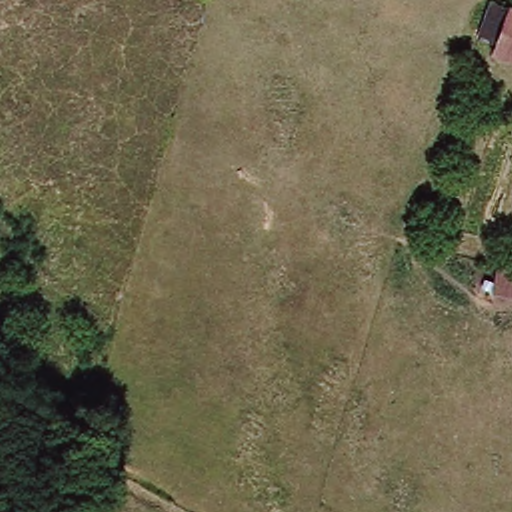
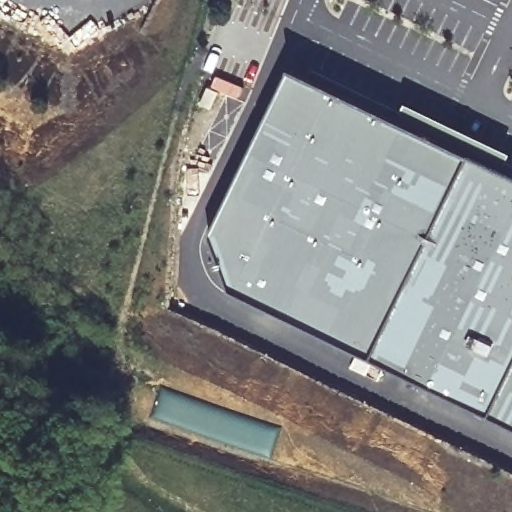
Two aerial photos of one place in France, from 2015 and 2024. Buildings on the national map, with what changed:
demolished [(510,59),(512,53),(512,60),(510,59)]
new [(229,294),(209,237),(290,69),(512,177),(512,434),(229,294)]
demolished [(469,73),(481,76),(476,92),(464,89),(469,73)]
demolished [(512,267),(512,298),(495,294),(504,266),(512,267)]
new [(156,416),(165,390),(277,432),(269,456),(255,456),(164,424),(165,419),(156,416)]

